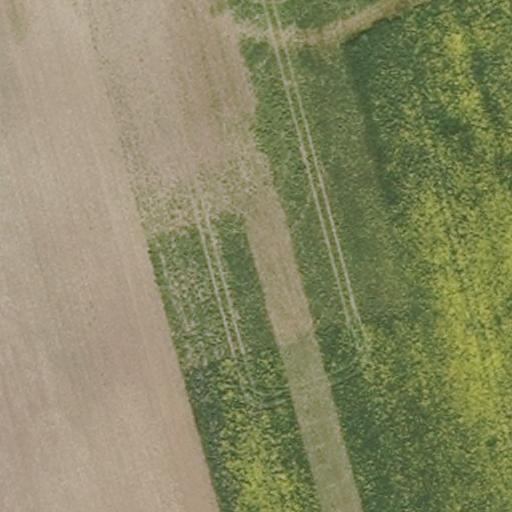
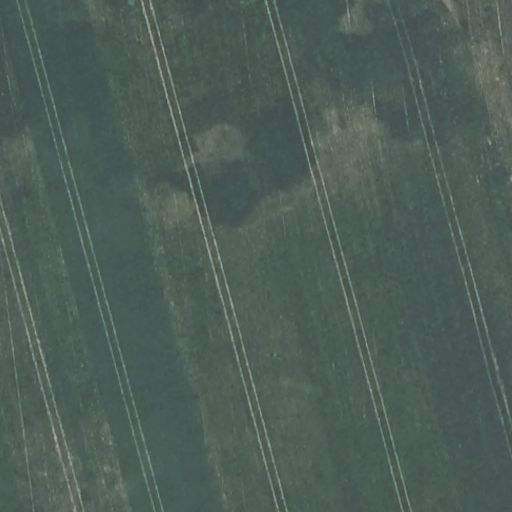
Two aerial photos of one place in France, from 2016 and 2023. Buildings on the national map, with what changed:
[]

